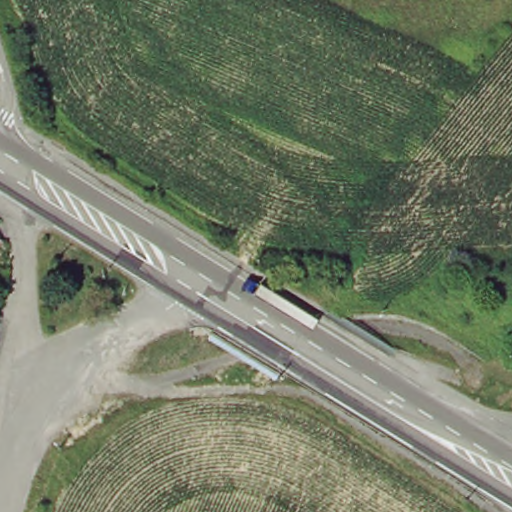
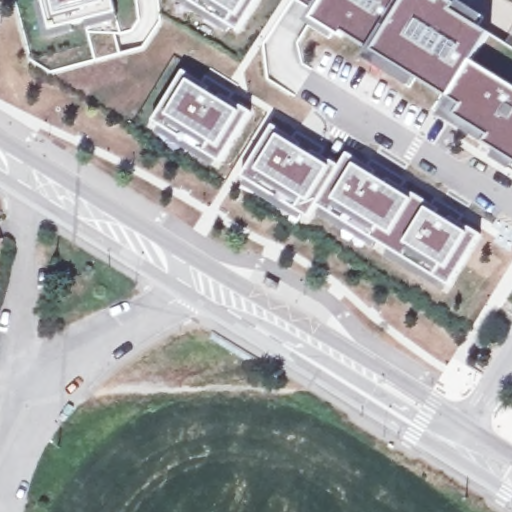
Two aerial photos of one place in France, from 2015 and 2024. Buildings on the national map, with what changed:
new [(57,71),(48,39),(44,40),(35,3),(43,1),(43,0),(110,0),(114,20),(86,29),(88,32),(113,34),(120,54),(57,71)]
new [(238,28),(193,0),(255,0),(238,28)]
new [(512,169),(493,157),(499,149),(489,144),(487,146),(439,116),(455,89),(448,85),(442,95),(340,34),(339,36),(324,26),(329,19),(317,12),(325,0),(442,0),(454,7),(451,13),(489,36),(510,4),(512,5),(512,169)]
new [(183,69),(201,80),(206,73),(234,90),(230,97),(251,110),(220,161),(208,153),(209,150),(168,125),(167,128),(152,119),(183,69)]
new [(294,135),(298,128),(326,145),(323,152),(340,162),(348,150),(369,162),(373,155),(408,176),(404,183),(433,201),(437,194),(466,211),(461,218),(482,230),(451,282),(439,275),(441,272),(399,247),(398,250),(370,234),(372,230),(331,206),(329,209),(318,202),(310,215),(296,206),(297,203),(256,178),(254,182),(242,174),(273,122),(294,135)]
unchanged [(3,239),(0,244),(0,237),(3,239)]

